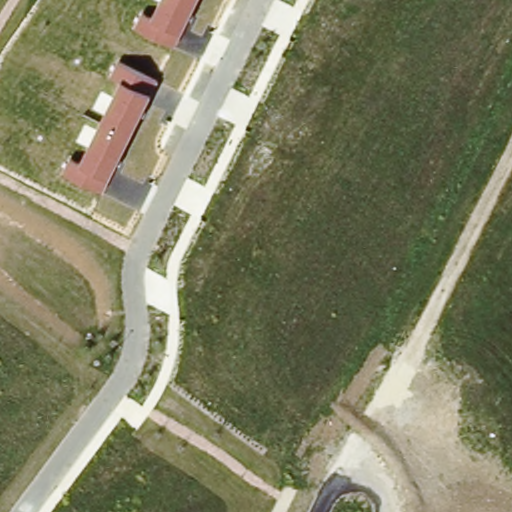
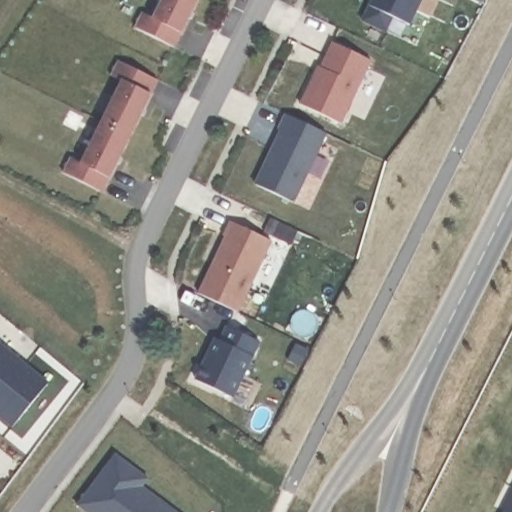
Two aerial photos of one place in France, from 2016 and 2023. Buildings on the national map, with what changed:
unchanged [(134,27),(142,12),(155,17),(163,0),(199,0),(176,47),(134,27)]
new [(369,6),(372,0),(421,0),(410,25),(392,16),(385,32),(361,21),(369,6)]
new [(315,72),(317,72),(332,42),(370,61),(340,124),(299,104),(315,72)]
unchanged [(62,173),(70,158),(84,163),(122,81),(111,75),(119,60),(159,80),(101,192),(62,173)]
new [(280,129),(277,127),(285,113),(287,115),(326,134),(294,202),(254,183),(280,129)]
new [(225,237),(222,235),(230,220),(235,222),(272,242),(239,312),(197,292),(225,237)]
new [(215,338),(220,341),(227,326),(259,342),(232,398),(195,380),(215,338)]
new [(12,427),(0,418),(0,344),(48,383),(12,427)]
new [(147,478),(142,486),(176,512),(87,512),(77,504),(115,453),(147,478)]
new [(509,512),(512,506),(512,512),(509,512)]

